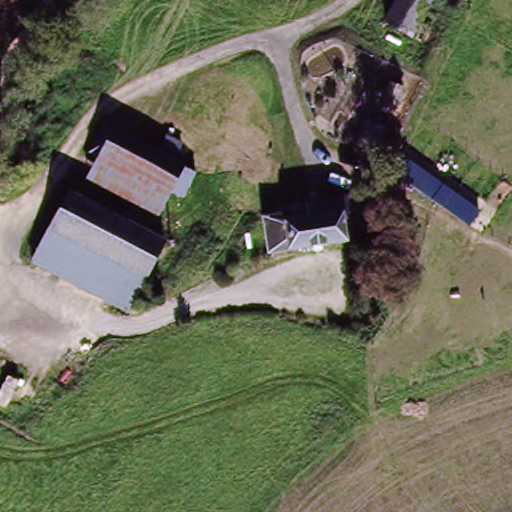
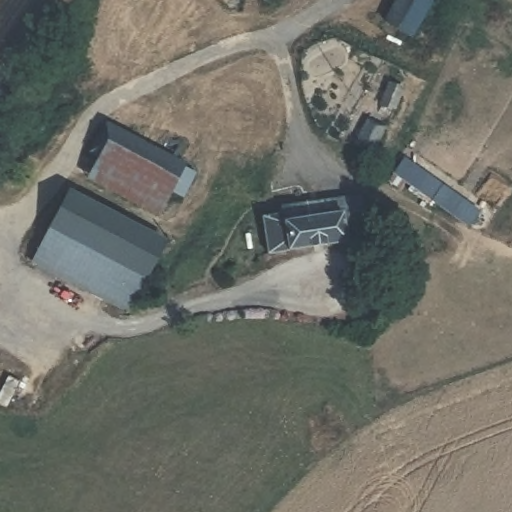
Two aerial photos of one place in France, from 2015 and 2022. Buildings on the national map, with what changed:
unchanged [(443,17),(430,40),(386,16),(396,0),(430,0),(425,8),(443,17)]
unchanged [(102,128),(181,171),(169,195),(89,153),(102,128)]
unchanged [(367,168),(353,161),(366,133),(380,139),(367,168)]
unchanged [(169,195),(159,215),(78,172),(89,153),(169,195)]
unchanged [(66,191),(164,240),(128,315),(30,268),(66,191)]
unchanged [(273,257),(265,222),(297,214),(319,208),(322,221),(345,215),(351,238),(284,254),(273,257)]

